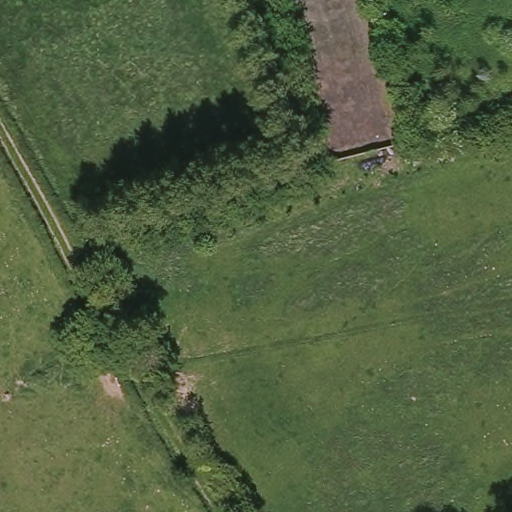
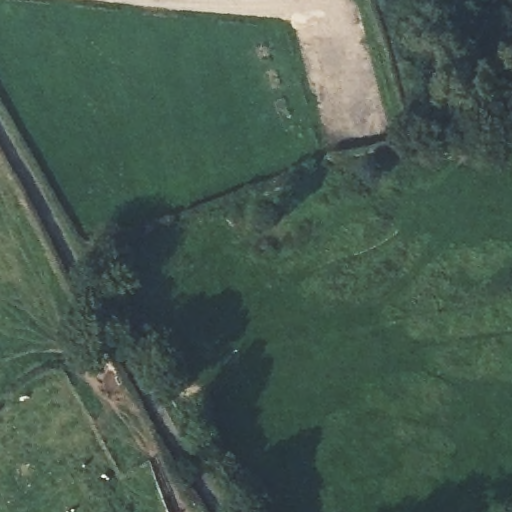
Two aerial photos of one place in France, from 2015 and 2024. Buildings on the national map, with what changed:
[]

